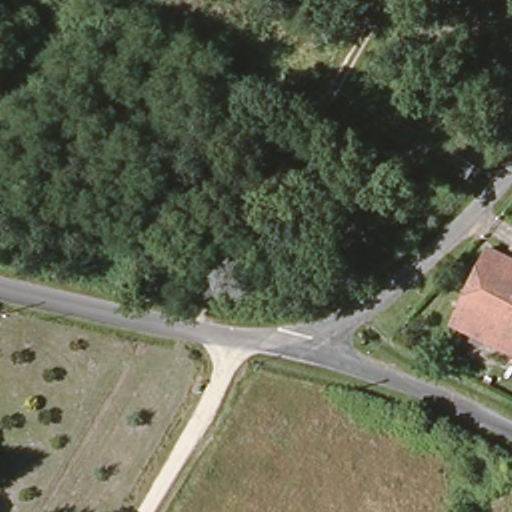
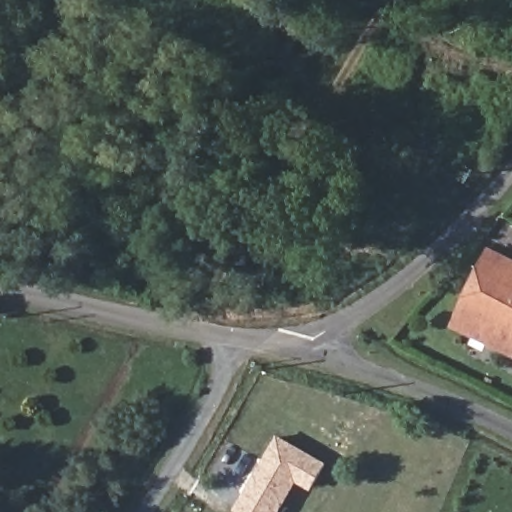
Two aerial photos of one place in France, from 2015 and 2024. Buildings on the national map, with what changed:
unchanged [(455,329),(491,256),(512,267),(512,355),(455,329)]
new [(280,512),(239,512),(234,509),(278,433),(327,462),(311,489),(297,481),(280,512)]

